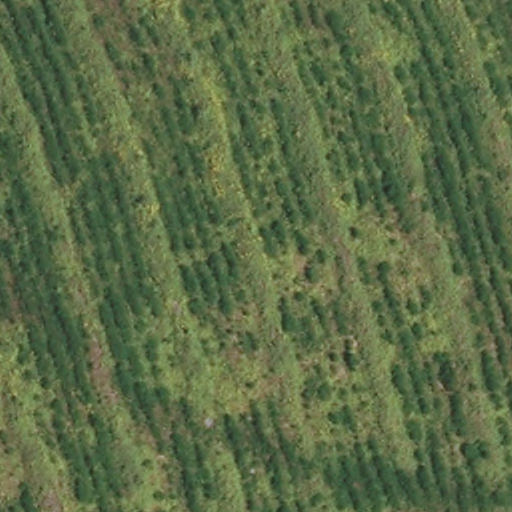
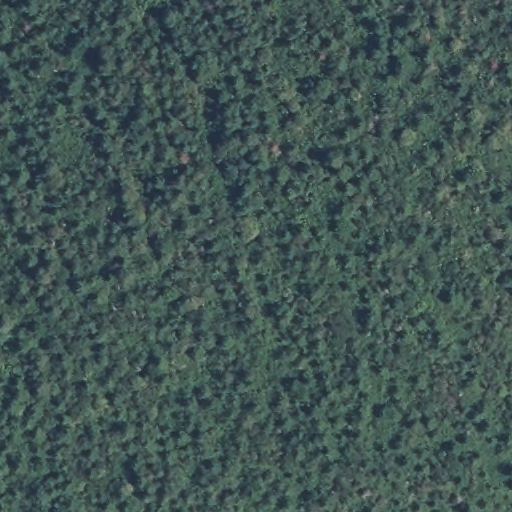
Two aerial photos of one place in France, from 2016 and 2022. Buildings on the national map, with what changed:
[]

